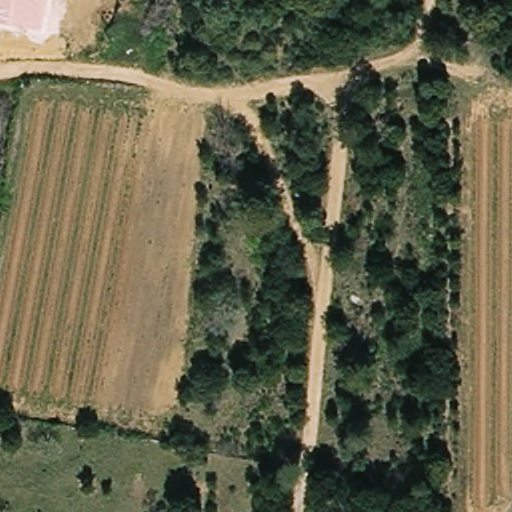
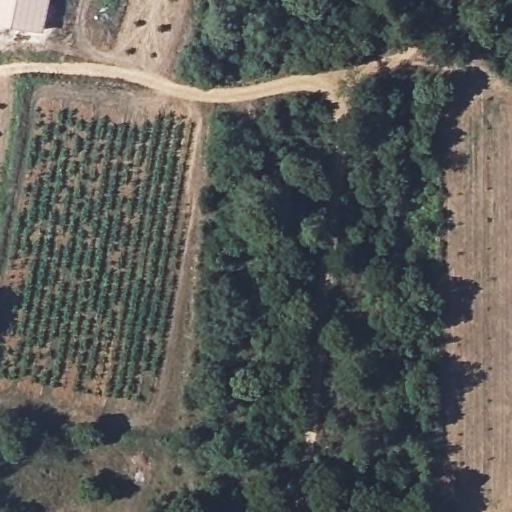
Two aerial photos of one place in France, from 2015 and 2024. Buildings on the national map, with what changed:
unchanged [(40,30),(0,21),(0,0),(46,0),(40,30)]

